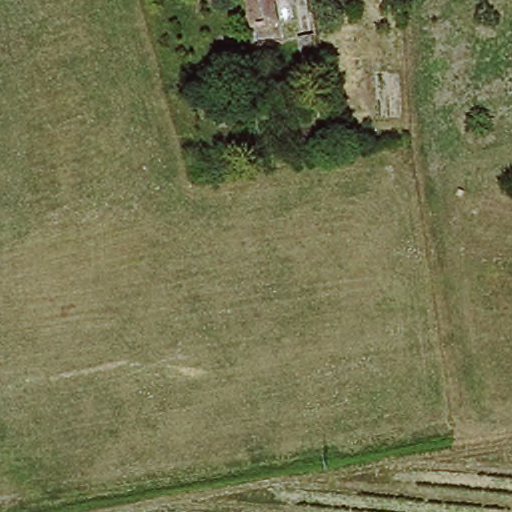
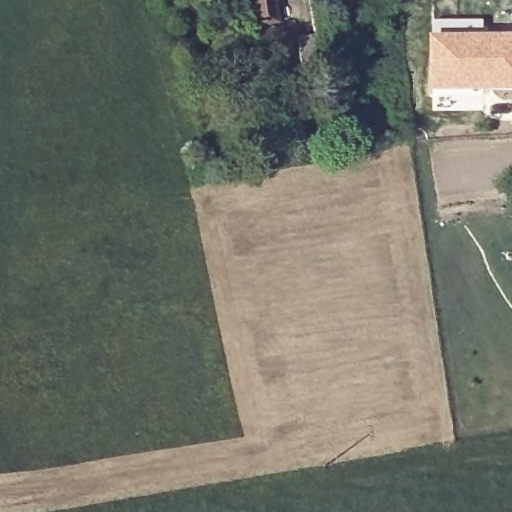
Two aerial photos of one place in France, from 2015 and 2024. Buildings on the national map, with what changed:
unchanged [(256,30),(249,0),(279,0),(282,25),(256,30)]
new [(485,21),(485,38),(512,38),(512,94),(429,94),(431,38),(432,21),(485,21)]
unchanged [(317,61),(301,64),(297,37),(313,35),(317,61)]

